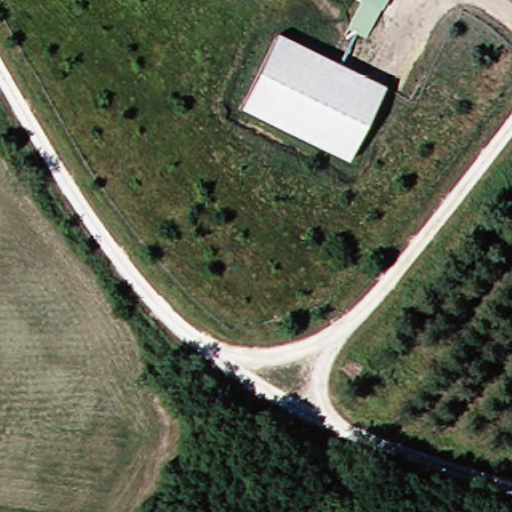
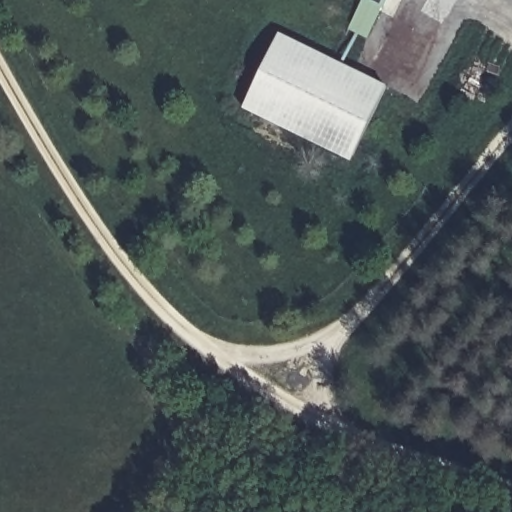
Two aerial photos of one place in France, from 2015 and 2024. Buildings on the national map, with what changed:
unchanged [(365,0),(387,0),(383,8),(365,0)]
unchanged [(390,85),(351,162),(245,109),(280,33),(390,85)]

